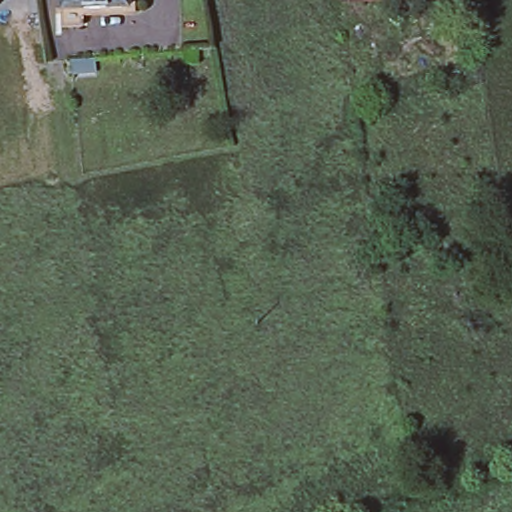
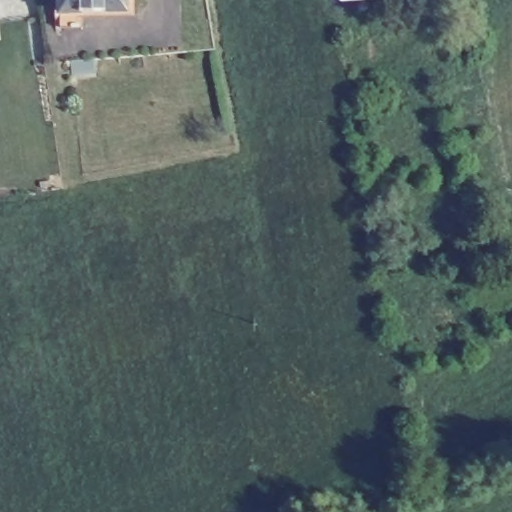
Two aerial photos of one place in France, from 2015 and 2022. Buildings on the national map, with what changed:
unchanged [(128,5),(60,6),(59,0),(128,0),(128,5)]
unchanged [(93,60),(95,73),(73,75),(71,62),(93,60)]

